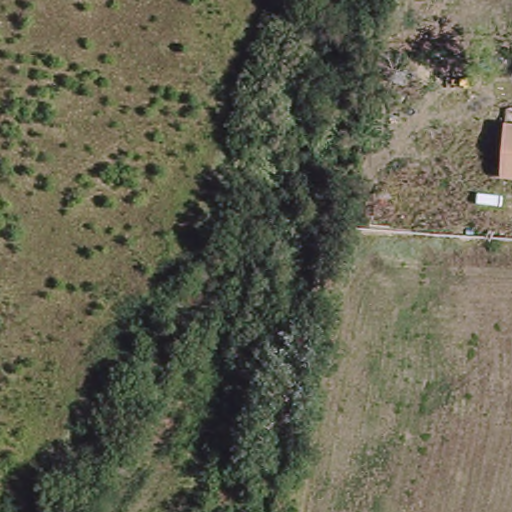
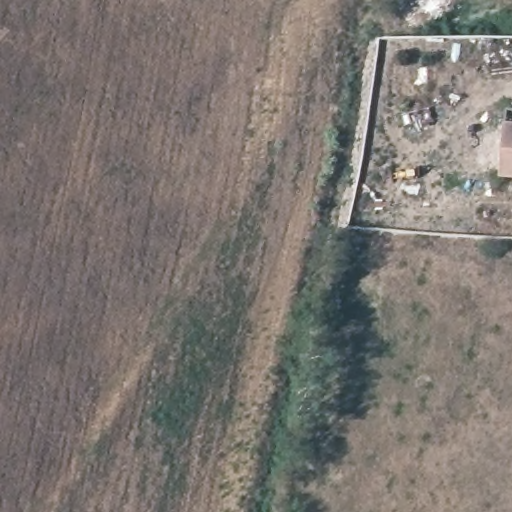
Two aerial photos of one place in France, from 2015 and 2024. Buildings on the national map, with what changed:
unchanged [(409,83),(396,82),(396,70),(410,70),(409,83)]
unchanged [(500,125),(512,125),(512,179),(497,178),(500,125)]

